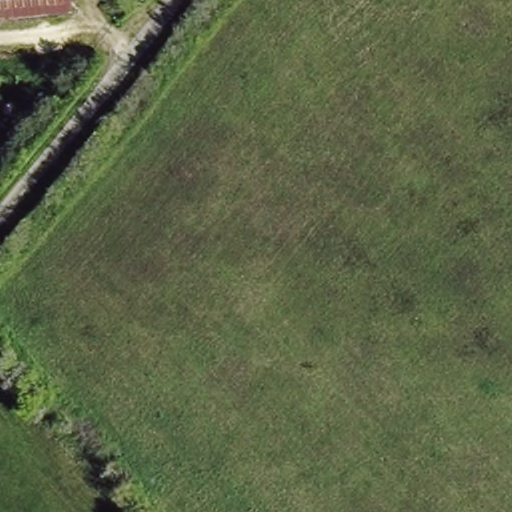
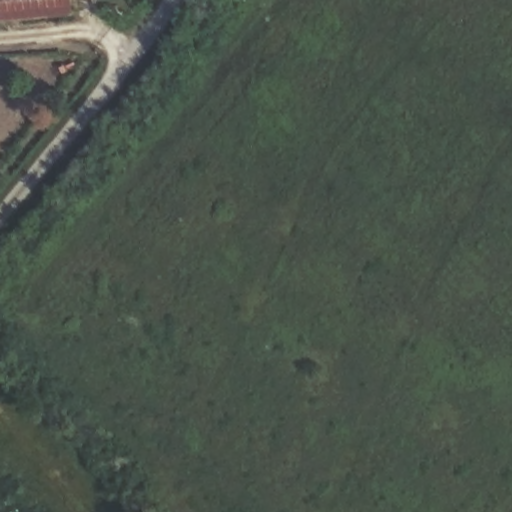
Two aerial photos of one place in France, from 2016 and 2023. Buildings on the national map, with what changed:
unchanged [(67,0),(68,9),(0,14),(0,0),(67,0)]

